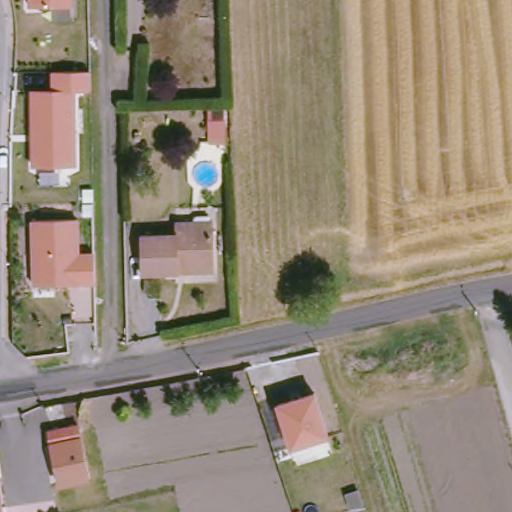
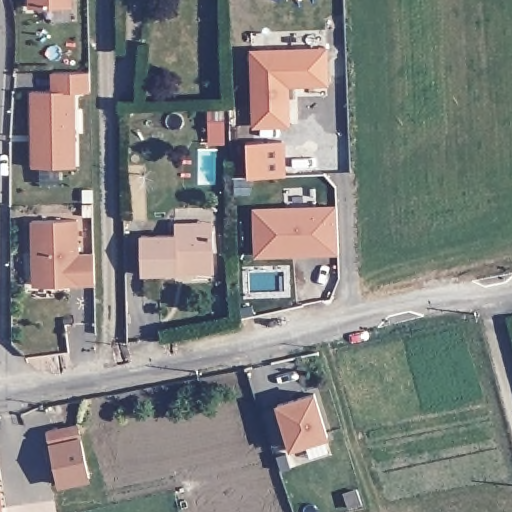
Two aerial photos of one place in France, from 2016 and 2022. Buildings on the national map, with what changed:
unchanged [(31,7),(31,0),(76,0),(76,6),(31,7)]
new [(327,47),(328,84),(288,86),(290,127),(251,127),(249,49),(327,47)]
new [(74,168),(33,170),(31,94),(52,94),(52,75),(88,74),(89,93),(73,94),(74,168)]
new [(251,176),(248,141),(284,140),(286,176),(251,176)]
new [(336,205),(338,254),(254,257),(253,209),(336,205)]
unchanged [(36,218),(81,216),(82,250),(98,250),(98,276),(98,280),(73,280),(38,281),(38,275),(36,218)]
unchanged [(184,269),(184,275),(145,275),(146,235),(176,235),(176,228),(216,229),(216,269),(184,269)]
unchanged [(291,452),(277,403),(318,391),(333,438),(291,452)]
unchanged [(60,488),(48,431),(82,424),(93,480),(60,488)]
unchanged [(0,502),(1,511),(0,512),(0,502)]

